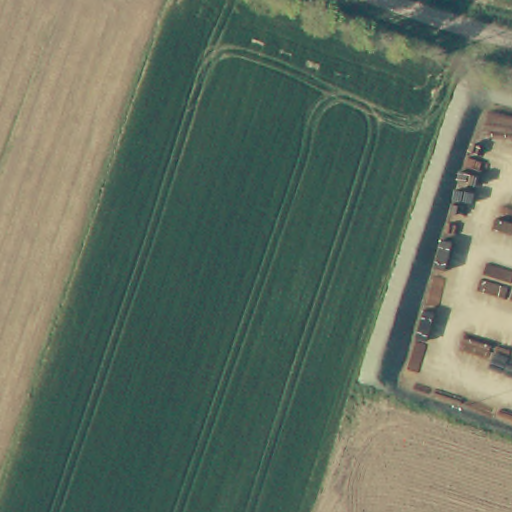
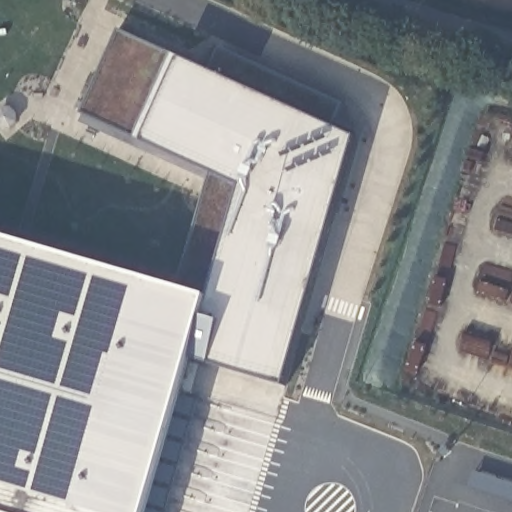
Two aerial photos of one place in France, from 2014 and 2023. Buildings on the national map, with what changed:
new [(211,181),(82,123),(87,116),(84,115),(123,33),(178,57),(215,75),(224,50),(346,106),(340,120),(367,133),(345,214),(337,213),(284,388),(287,389),(279,415),(198,391),(196,398),(182,394),(147,512),(0,512),(0,236),(180,289),(211,181)]

